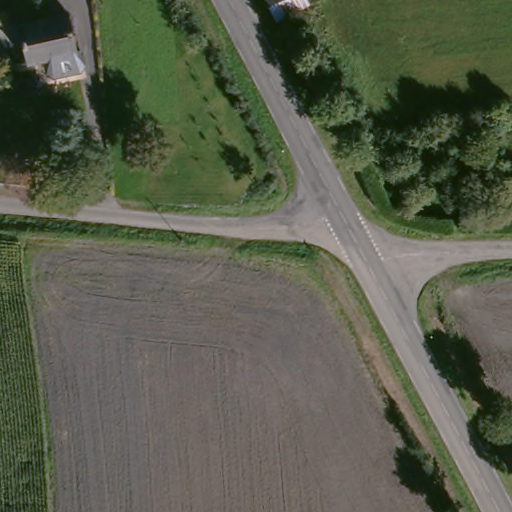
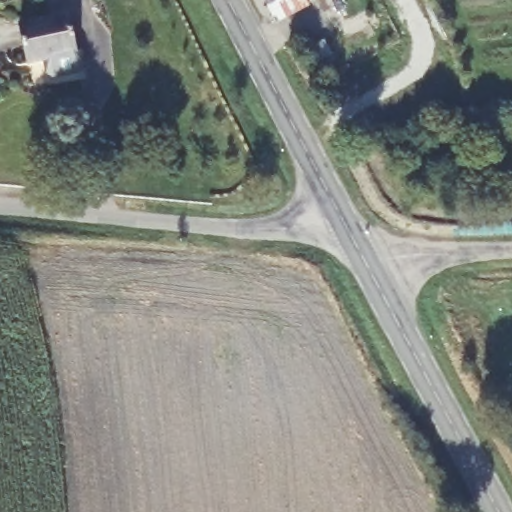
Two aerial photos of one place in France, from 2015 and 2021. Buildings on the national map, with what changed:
unchanged [(308,12),(275,29),(260,0),(301,0),(308,12)]
unchanged [(81,55),(86,54),(88,68),(83,73),(56,78),(49,74),(48,61),(29,64),(23,24),(74,15),(81,55)]

